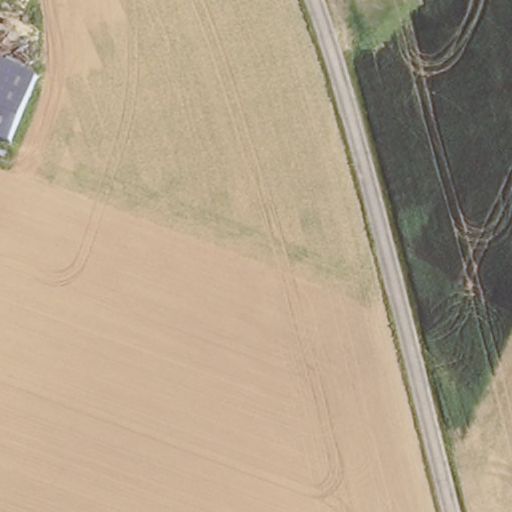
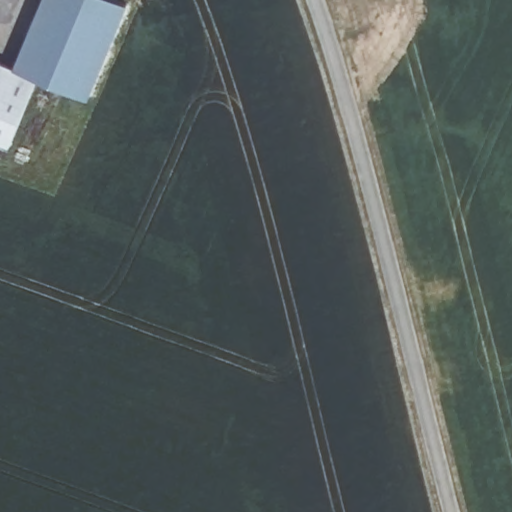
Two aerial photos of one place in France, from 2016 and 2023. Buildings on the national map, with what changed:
new [(110,0),(127,7),(87,99),(35,76),(15,68),(43,0),(110,0)]
unchanged [(10,144),(0,140),(0,62),(35,76),(10,144)]

